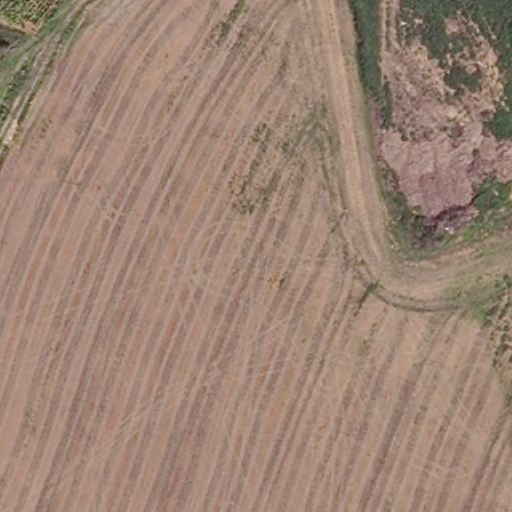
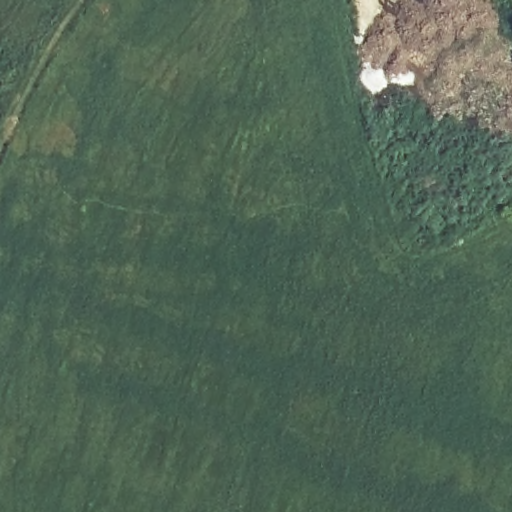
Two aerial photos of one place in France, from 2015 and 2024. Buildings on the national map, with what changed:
[]

